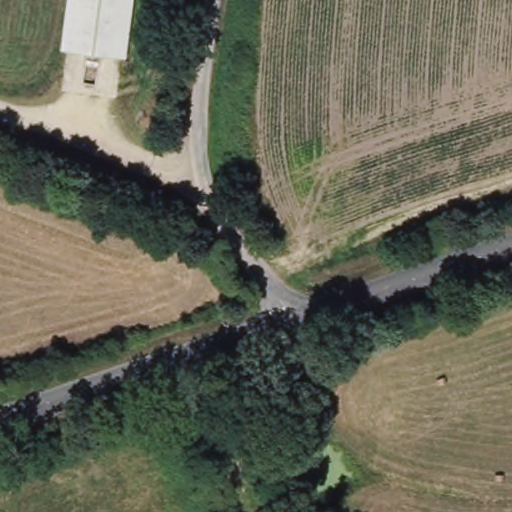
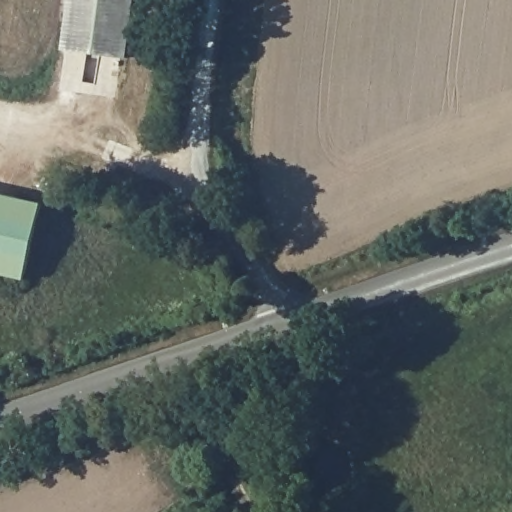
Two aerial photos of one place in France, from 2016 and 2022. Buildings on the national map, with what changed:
unchanged [(123,0),(115,59),(61,51),(68,0),(123,0)]
new [(42,202),(26,278),(0,272),(0,193),(42,202)]

